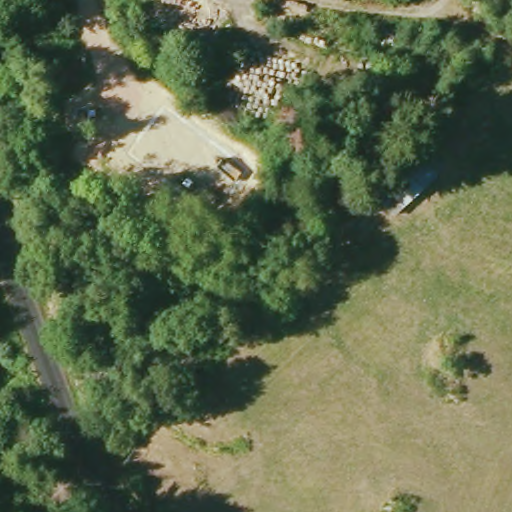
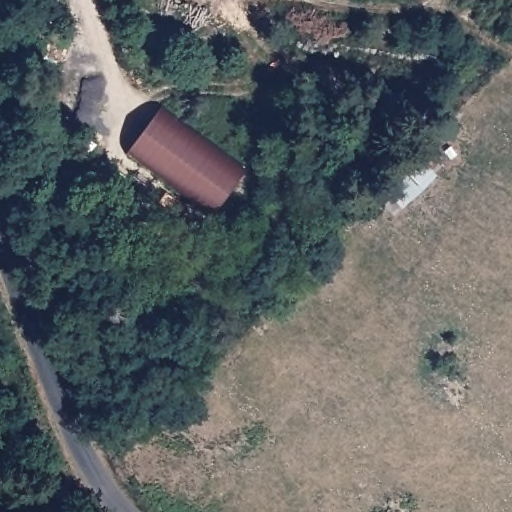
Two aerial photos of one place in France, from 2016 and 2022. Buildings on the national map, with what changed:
new [(159,110),(244,171),(217,212),(129,150),(159,110)]
unchanged [(429,175),(397,208),(381,188),(413,156),(429,175)]

